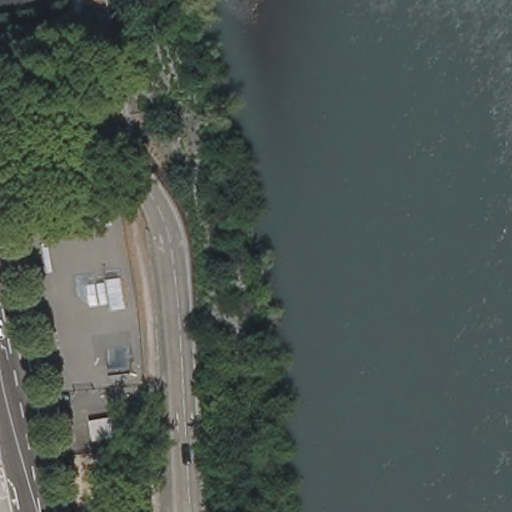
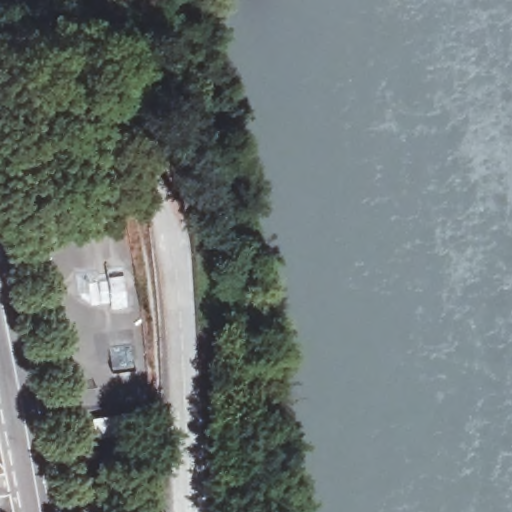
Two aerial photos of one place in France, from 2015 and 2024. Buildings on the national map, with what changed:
unchanged [(95,419),(139,411),(142,430),(98,438),(95,419)]

